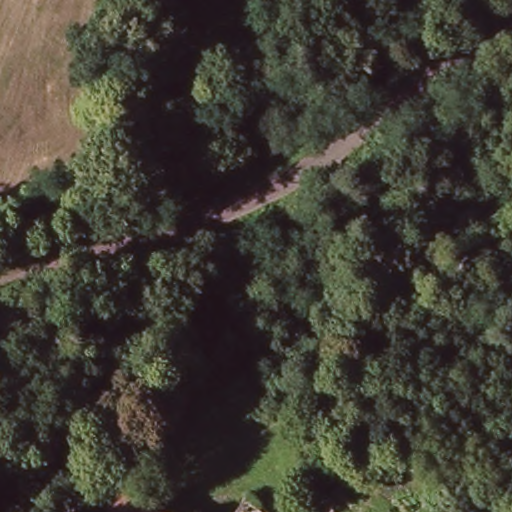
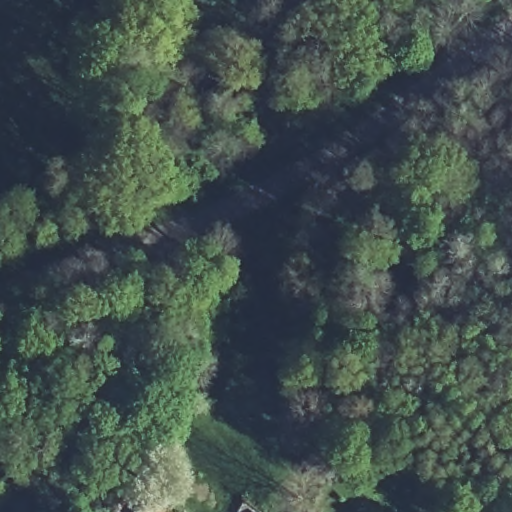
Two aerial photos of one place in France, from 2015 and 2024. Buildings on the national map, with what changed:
unchanged [(163,512),(107,512),(119,487),(163,512)]

